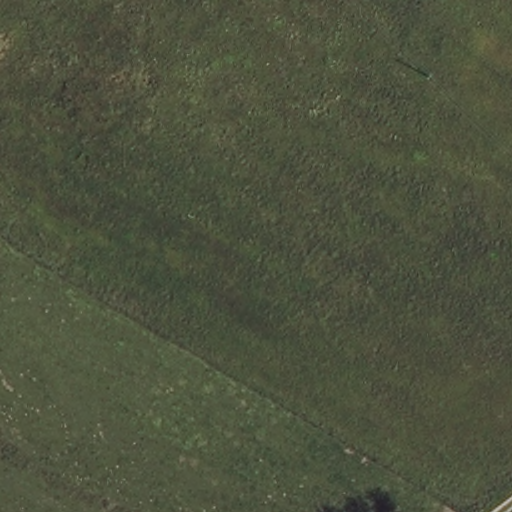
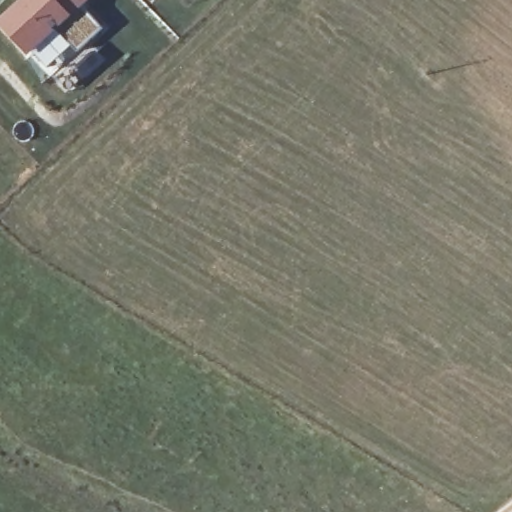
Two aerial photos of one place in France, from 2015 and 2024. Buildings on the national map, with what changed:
new [(16,0),(88,0),(82,6),(102,28),(75,53),(70,47),(44,68),(30,53),(24,58),(0,30),(0,15),(16,0)]

